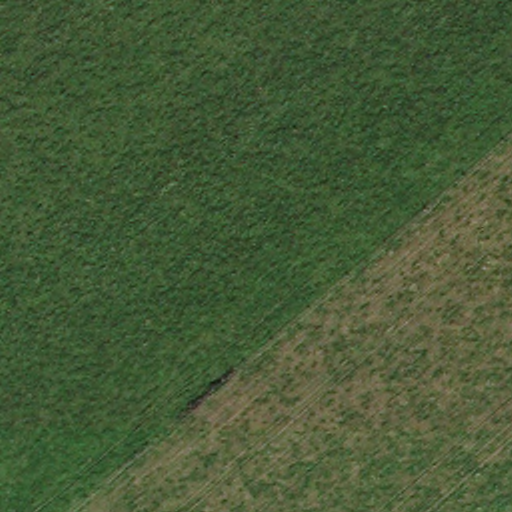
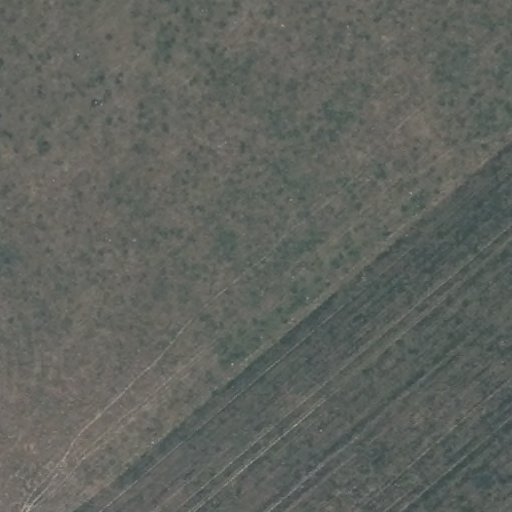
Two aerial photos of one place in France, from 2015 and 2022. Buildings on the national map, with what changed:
[]

